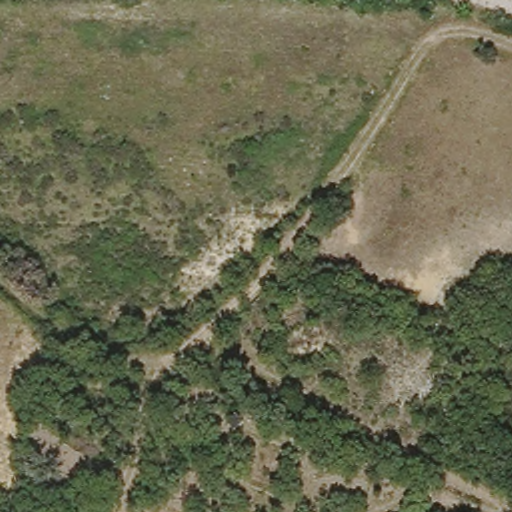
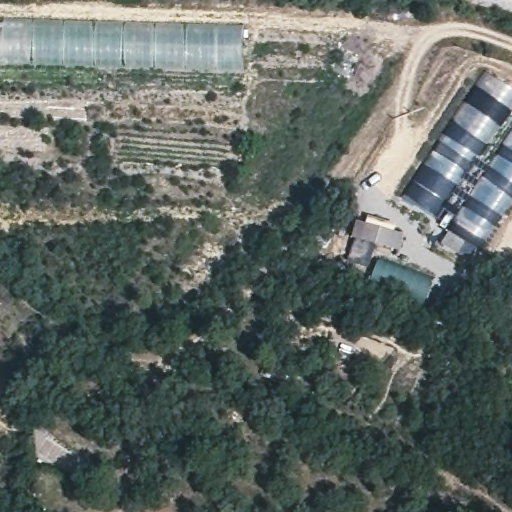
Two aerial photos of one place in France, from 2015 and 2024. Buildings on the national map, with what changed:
new [(243,71),(38,65),(0,65),(0,17),(243,23),(243,71)]
new [(405,198),(488,76),(512,91),(512,103),(436,217),(405,198)]
new [(479,250),(449,229),(512,133),(512,201),(479,250)]
new [(366,223),(368,216),(396,224),(395,230),(406,233),(401,251),(351,237),(355,220),(366,223)]
new [(432,276),(425,303),(371,286),(377,260),(432,276)]

